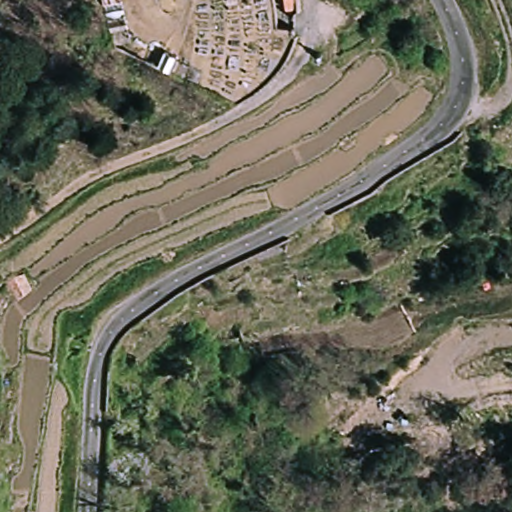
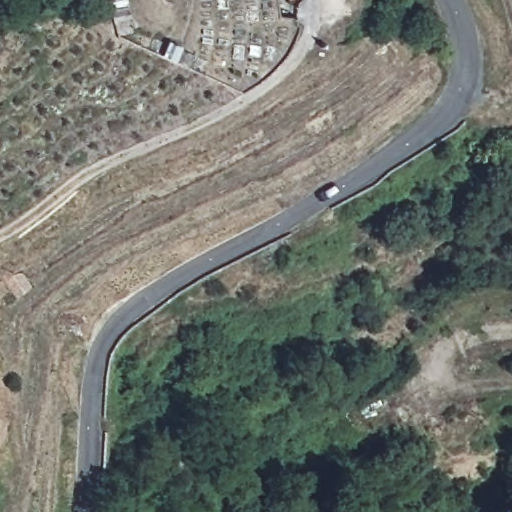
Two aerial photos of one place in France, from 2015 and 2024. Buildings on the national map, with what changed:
unchanged [(304,0),(306,8),(295,9),(292,0),(304,0)]

